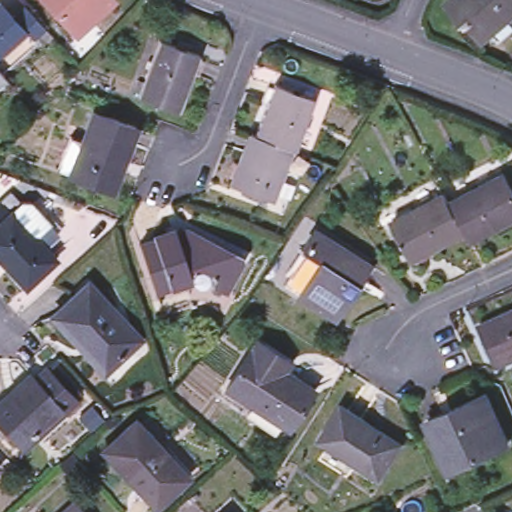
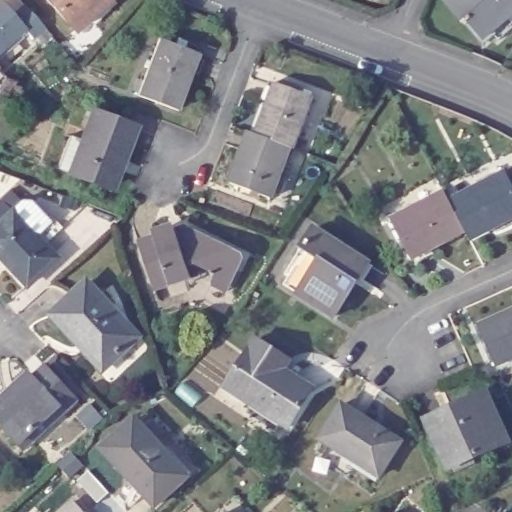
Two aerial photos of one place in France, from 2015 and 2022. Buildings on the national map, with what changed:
unchanged [(45,0),(109,0),(73,31),(45,0)]
unchanged [(461,22),(448,6),(456,0),(512,0),(512,14),(481,39),(465,19),(461,22)]
unchanged [(2,3),(15,18),(28,6),(51,31),(38,43),(26,30),(0,54),(0,5),(2,3)]
unchanged [(200,55),(178,111),(140,96),(161,40),(200,55)]
unchanged [(273,84),(312,99),(293,150),(289,149),(254,136),(273,84)]
unchanged [(73,138),(85,142),(95,113),(139,129),(126,162),(123,160),(111,190),(60,172),(73,138)]
unchanged [(270,200),(230,185),(250,134),(254,136),(289,149),(270,200)]
unchanged [(451,206),(506,182),(512,195),(512,226),(470,245),(451,206)]
unchanged [(410,259),(392,220),(445,196),(463,234),(410,259)]
unchanged [(22,290),(0,266),(0,226),(9,217),(20,206),(28,208),(55,237),(40,251),(51,264),(22,290)]
unchanged [(323,257),(305,245),(318,226),(371,261),(336,312),(302,289),(323,257)]
unchanged [(141,242),(188,227),(246,254),(230,289),(215,282),(217,276),(215,267),(200,260),(191,264),(195,277),(157,289),(141,242)]
unchanged [(140,338),(107,370),(55,318),(86,286),(140,338)]
unchanged [(478,327),(512,312),(512,357),(494,364),(478,327)]
unchanged [(258,336),(290,358),(284,367),(313,387),(287,424),(226,383),(258,336)]
unchanged [(27,376),(33,382),(46,370),(75,401),(62,414),(57,408),(18,444),(0,425),(0,402),(27,376)]
unchanged [(451,413),(450,409),(485,394),(506,443),(446,469),(426,424),(451,413)]
unchanged [(401,441),(379,475),(320,436),(342,403),(401,441)]
unchanged [(187,477),(156,506),(103,449),(135,421),(187,477)]
unchanged [(80,512),(63,512),(72,503),(80,512)]

